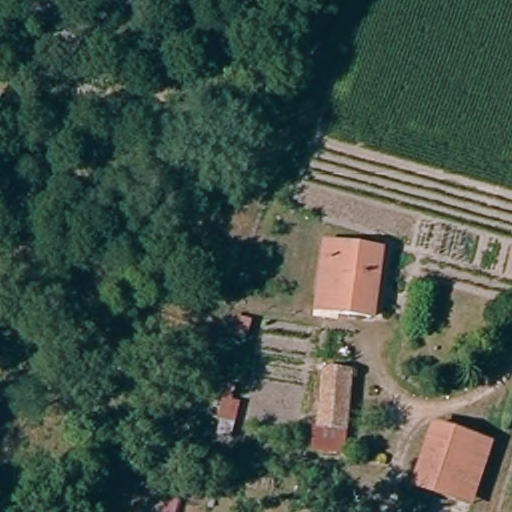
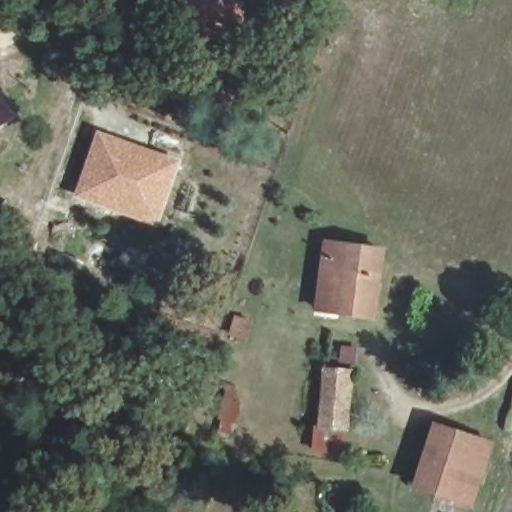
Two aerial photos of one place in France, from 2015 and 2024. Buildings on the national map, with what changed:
new [(245,0),(245,30),(186,29),(186,0),(245,0)]
new [(14,108),(0,119),(0,90),(14,108)]
new [(131,145),(143,148),(175,159),(167,185),(152,181),(146,198),(119,189),(114,205),(78,194),(98,134),(131,145)]
new [(119,189),(146,198),(152,181),(167,185),(156,219),(114,205),(119,189)]
unchanged [(319,293),(321,243),(383,247),(379,316),(332,313),(319,313),(319,293)]
unchanged [(311,428),(317,429),(322,368),(351,370),(347,456),(310,453),(311,428)]
unchanged [(440,435),(477,449),(460,496),(423,484),(440,435)]

